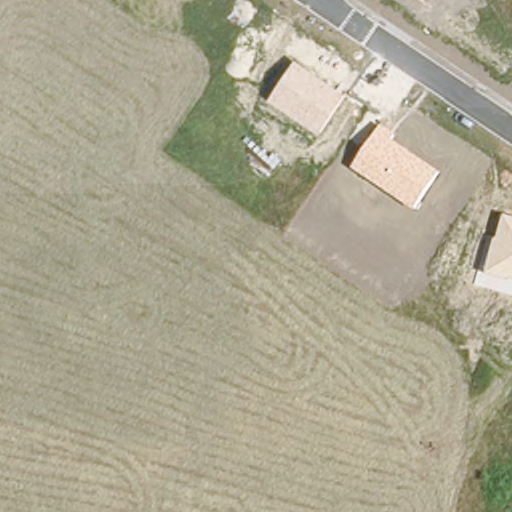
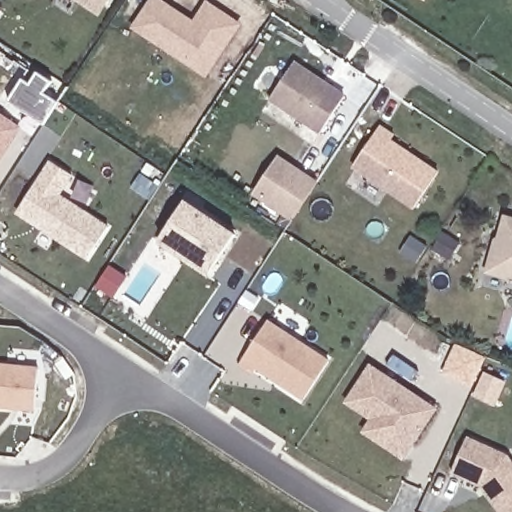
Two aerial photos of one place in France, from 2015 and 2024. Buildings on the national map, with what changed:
new [(76,0),(109,0),(100,16),(76,0)]
new [(207,5),(238,25),(205,74),(135,27),(152,0),(158,0),(194,24),(207,5)]
unchanged [(424,0),(425,0),(425,1),(424,0)]
unchanged [(320,134),(269,100),(295,61),(345,94),(320,134)]
new [(0,155),(0,115),(19,127),(0,155)]
unchanged [(439,171),(414,209),(351,167),(379,124),(394,135),(392,140),(439,171)]
new [(293,221),(252,193),(279,154),(319,181),(293,221)]
new [(53,161),(74,175),(60,195),(109,228),(88,259),(19,213),(53,161)]
new [(187,201),(236,235),(209,275),(160,241),(187,201)]
unchanged [(503,215),(512,218),(512,278),(511,277),(508,280),(484,273),(492,239),(497,237),(503,215)]
new [(267,320),(329,361),(304,398),(255,367),(253,372),(239,363),(267,320)]
new [(34,409),(0,406),(0,365),(37,369),(34,409)]
new [(346,402),(370,365),(435,407),(411,445),(403,457),(364,431),(372,418),(346,402)]
new [(472,437),(508,456),(512,462),(512,512),(500,512),(481,485),(454,472),(472,437)]

